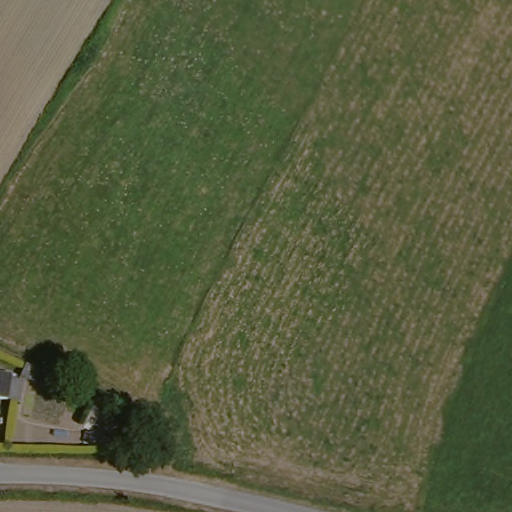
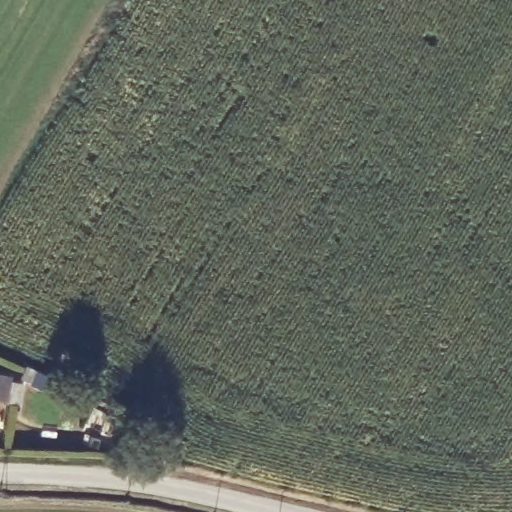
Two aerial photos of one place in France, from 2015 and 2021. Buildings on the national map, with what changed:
unchanged [(9,403),(0,401),(0,375),(14,378),(9,403)]

